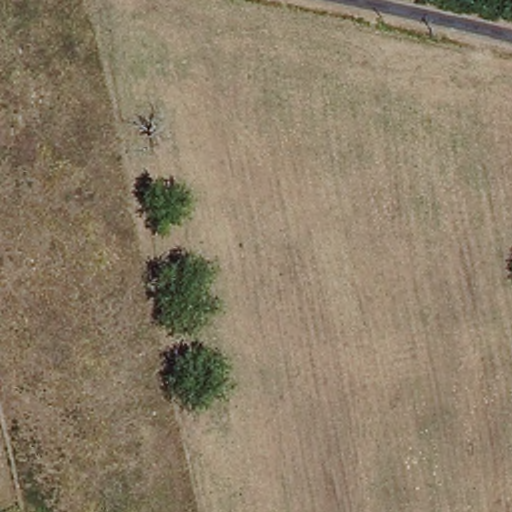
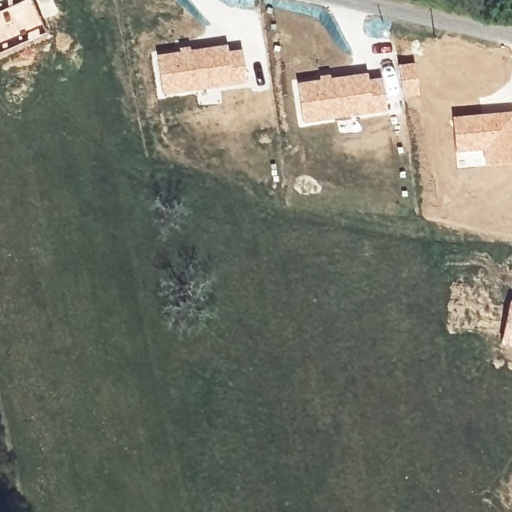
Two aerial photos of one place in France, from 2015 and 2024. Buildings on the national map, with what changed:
new [(226,44),(227,50),(241,48),(247,83),(213,92),(159,96),(155,54),(226,44)]
new [(415,62),(418,94),(402,97),(397,64),(415,62)]
new [(367,72),(368,78),(382,77),(388,111),(302,122),(296,81),(367,72)]
new [(512,162),(457,169),(452,116),(512,111),(512,162)]
new [(512,300),(512,350),(500,347),(510,300),(512,300)]

